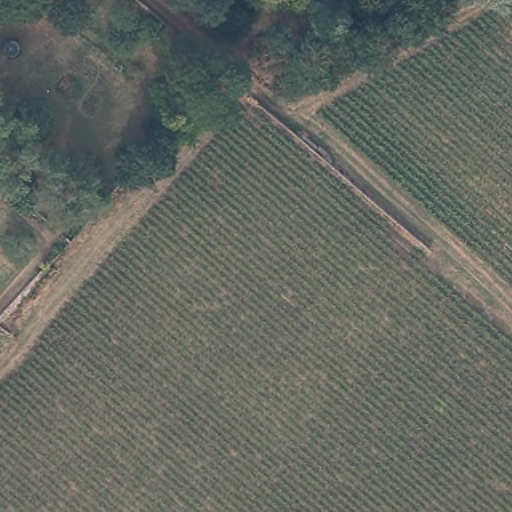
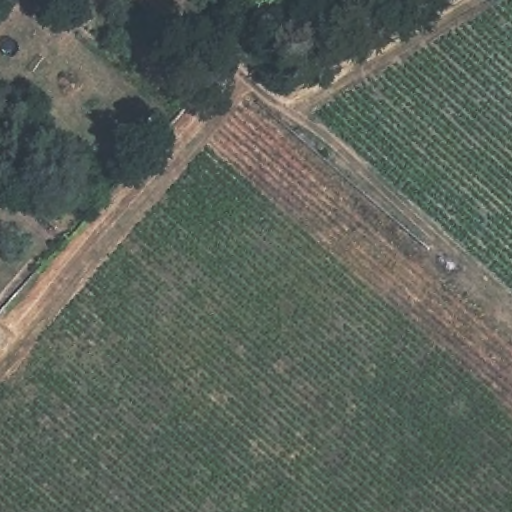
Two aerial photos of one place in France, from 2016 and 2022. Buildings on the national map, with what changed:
[]

